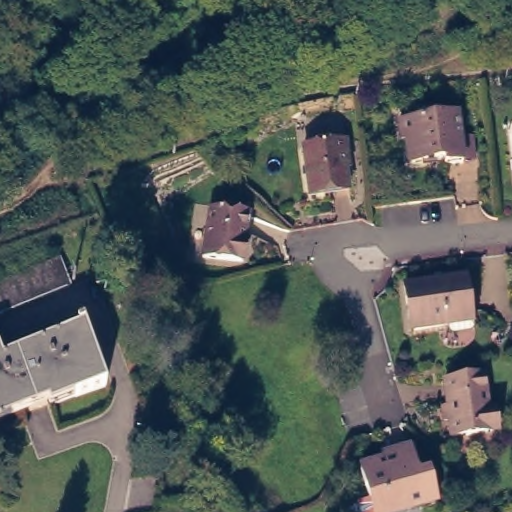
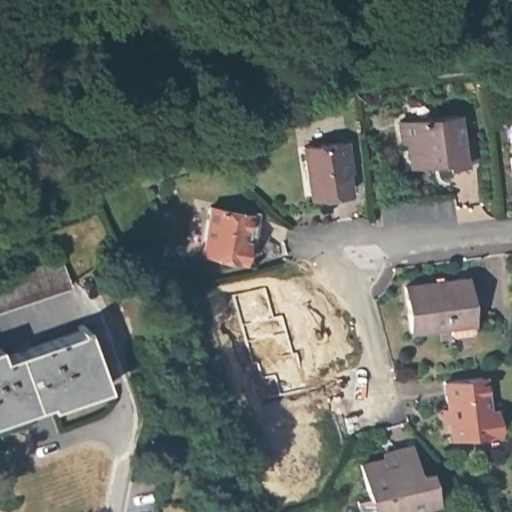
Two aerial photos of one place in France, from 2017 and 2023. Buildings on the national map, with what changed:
unchanged [(474,147),(461,148),(459,152),(444,153),(444,149),(438,150),(435,104),(457,102),(459,126),(472,124),(474,147)]
unchanged [(409,154),(405,127),(400,128),(399,108),(435,104),(438,150),(409,154)]
unchanged [(337,131),(343,177),(304,182),(298,136),(337,131)]
unchanged [(240,250),(230,249),(202,244),(212,197),(246,204),(240,228),(245,229),(240,246),(240,250)]
unchanged [(78,287),(0,318),(0,283),(68,258),(78,287)]
unchanged [(466,280),(471,329),(465,339),(450,341),(445,336),(444,327),(404,332),(399,289),(466,280)]
unchanged [(88,317),(109,377),(76,390),(72,380),(0,408),(0,344),(2,350),(88,317)]
unchanged [(488,370),(492,398),(497,398),(499,421),(457,427),(450,376),(488,370)]
unchanged [(379,491),(370,458),(403,449),(402,443),(419,438),(429,472),(440,469),(442,477),(446,494),(392,508),(385,511),(379,491)]

